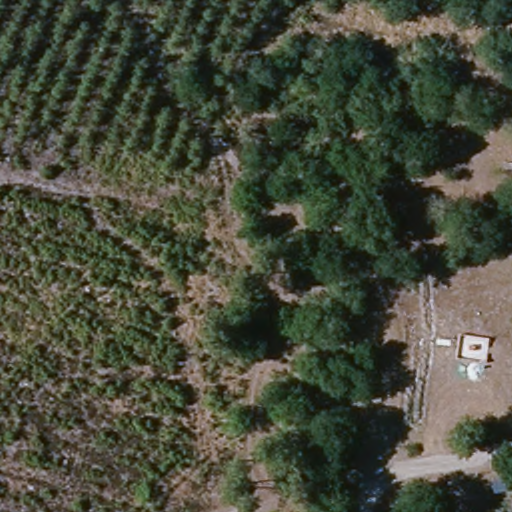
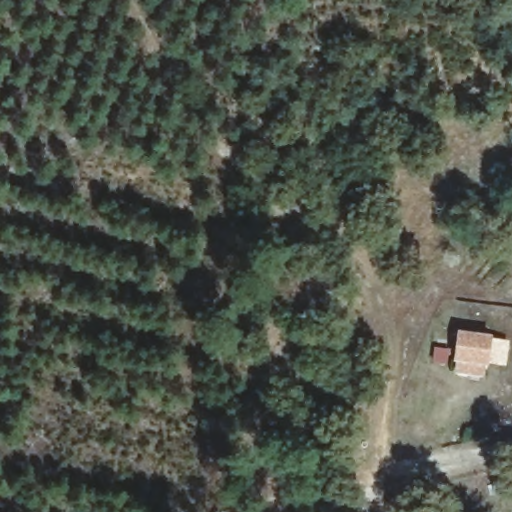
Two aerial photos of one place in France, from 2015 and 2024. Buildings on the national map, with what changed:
new [(453,373),(459,329),(491,334),(485,378),(453,373)]

